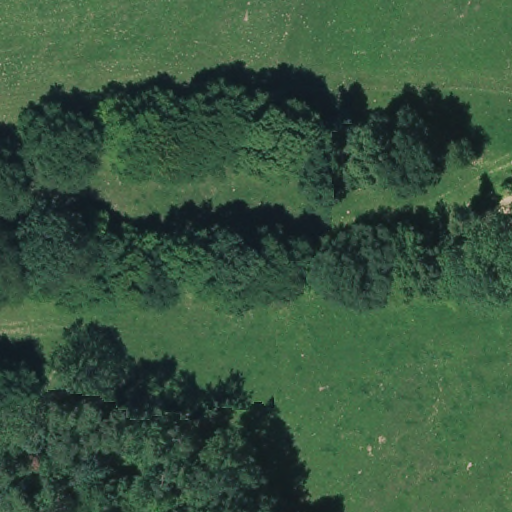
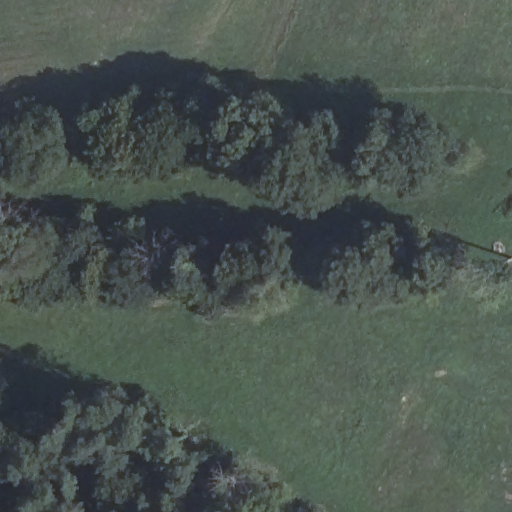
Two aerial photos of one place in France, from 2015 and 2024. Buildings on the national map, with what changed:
[]

